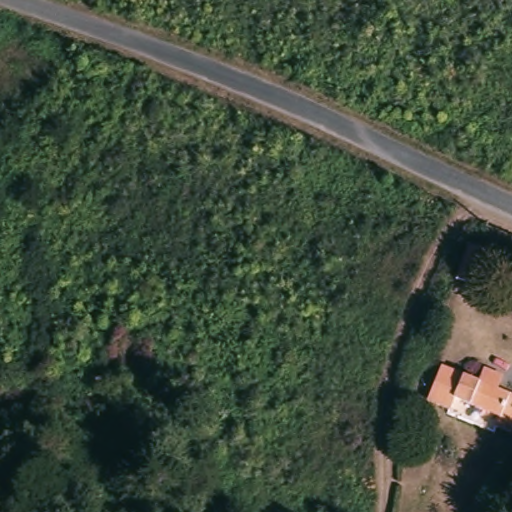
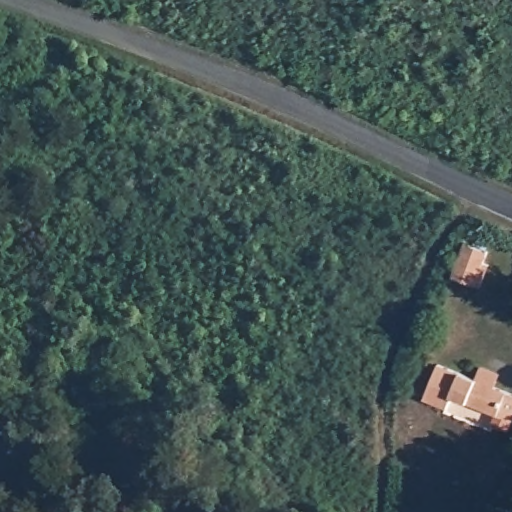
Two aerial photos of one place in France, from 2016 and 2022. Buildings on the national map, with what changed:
unchanged [(480,282),(457,272),(473,238),(495,249),(480,282)]
unchanged [(501,427),(485,420),(490,409),(447,389),(442,401),(420,390),(436,356),(473,374),(479,362),(496,370),(491,382),(512,393),(512,406),(506,418),(501,427)]

